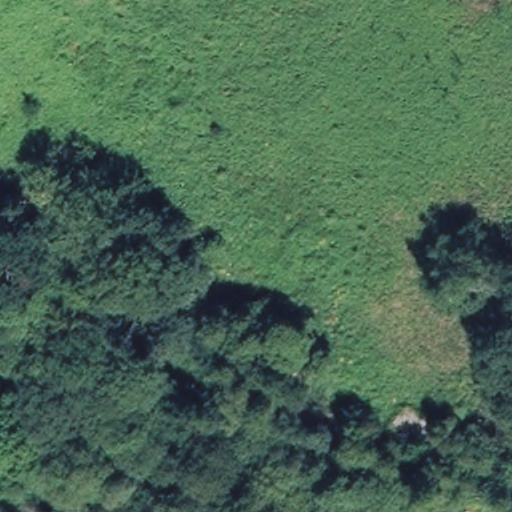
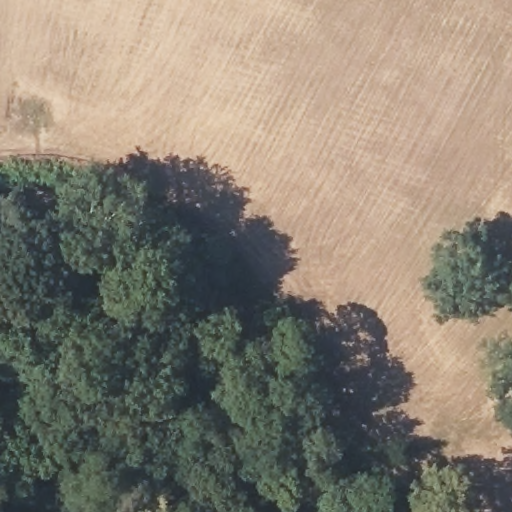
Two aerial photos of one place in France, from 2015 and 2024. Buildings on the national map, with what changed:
unchanged [(430,420),(439,404),(459,419),(425,462),(382,432),(405,403),(430,420)]

